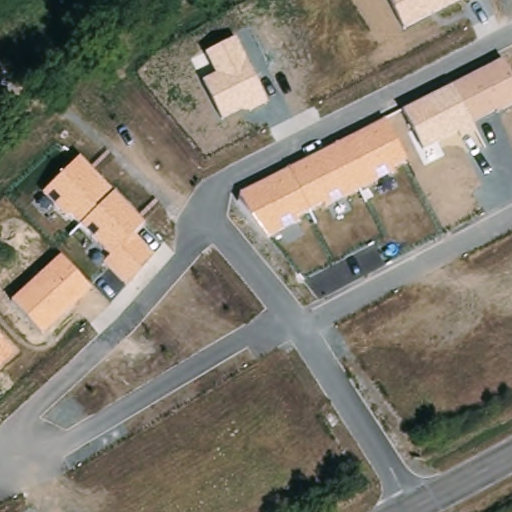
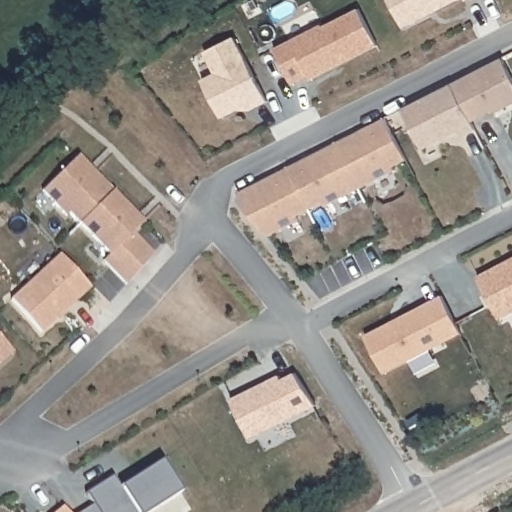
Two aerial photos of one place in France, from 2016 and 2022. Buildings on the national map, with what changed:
unchanged [(390,0),(460,0),(403,29),(390,0)]
unchanged [(465,0),(470,0),(466,2),(465,0)]
new [(318,85),(316,81),(299,89),(281,54),(329,30),(330,32),(366,14),(385,51),(351,67),(339,74),(318,85)]
unchanged [(267,102),(248,112),(240,110),(220,119),(201,80),(214,73),(204,52),(236,37),(267,102)]
unchanged [(512,78),(512,106),(497,113),(495,110),(472,123),(474,130),(459,137),(456,132),(422,150),(402,110),(502,57),(512,78)]
unchanged [(407,160),(392,169),(394,172),(323,207),(321,203),(296,217),(298,221),(266,237),(237,195),(384,118),(407,160)]
unchanged [(143,222),(133,232),(154,254),(126,285),(103,262),(110,255),(67,213),(63,216),(41,192),(79,157),(143,222)]
unchanged [(92,288),(42,335),(11,301),(60,256),(92,288)]
new [(476,276),(512,257),(512,312),(498,318),(476,276)]
new [(450,300),(470,338),(453,347),(393,378),(373,341),(433,309),(450,300)]
unchanged [(0,367),(0,338),(14,354),(0,367)]
new [(229,399),(280,374),(281,377),(294,372),(315,406),(249,438),(229,399)]
new [(94,500),(121,482),(129,493),(170,467),(190,497),(168,512),(100,512),(102,511),(94,500)]
new [(62,506),(68,512),(55,512),(62,506)]

